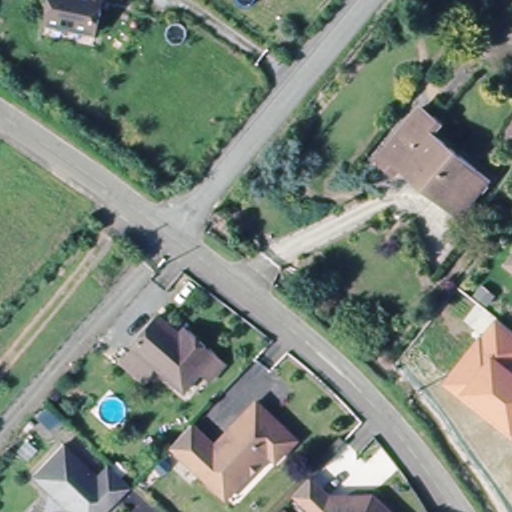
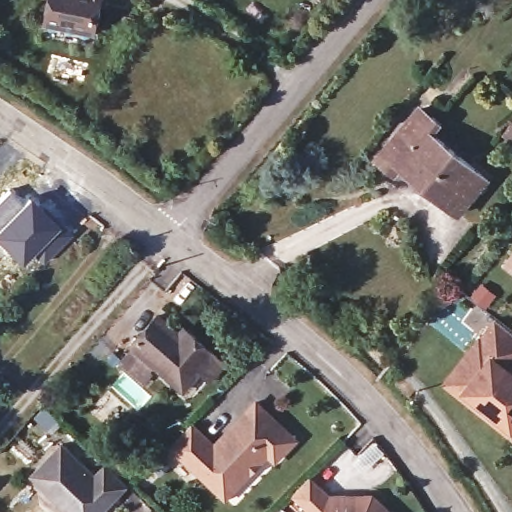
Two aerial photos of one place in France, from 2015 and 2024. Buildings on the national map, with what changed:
unchanged [(46,0),(99,0),(91,37),(40,26),(46,0)]
unchanged [(104,0),(106,0),(106,1),(104,0)]
unchanged [(438,196),(396,160),(390,167),(380,158),(421,110),(437,124),(432,131),(467,161),(438,196)]
unchanged [(508,135),(512,129),(512,138),(508,135)]
unchanged [(488,179),(459,214),(438,196),(467,161),(488,179)]
new [(31,252),(21,261),(0,240),(0,197),(11,186),(23,198),(30,192),(61,222),(73,232),(44,262),(31,252)]
new [(512,252),(512,271),(503,263),(512,252)]
demolished [(508,264),(512,259),(512,267),(508,264)]
unchanged [(120,362),(134,347),(132,345),(158,315),(180,334),(186,327),(191,332),(216,353),(215,354),(226,364),(211,381),(200,371),(184,390),(156,366),(143,381),(120,362)]
unchanged [(512,329),(512,436),(443,381),(479,334),(480,336),(496,317),(512,329)]
unchanged [(216,488),(171,446),(192,423),(218,448),(225,441),(222,437),(257,401),(296,439),(276,461),(269,453),(240,483),(226,497),(216,488)]
unchanged [(106,512),(70,512),(69,512),(65,512),(32,480),(62,449),(95,481),(106,468),(115,477),(128,489),(106,512)]
unchanged [(373,500),(385,512),(313,512),(307,512),(293,498),(309,482),(329,501),(347,501),(365,500),(373,500)]

